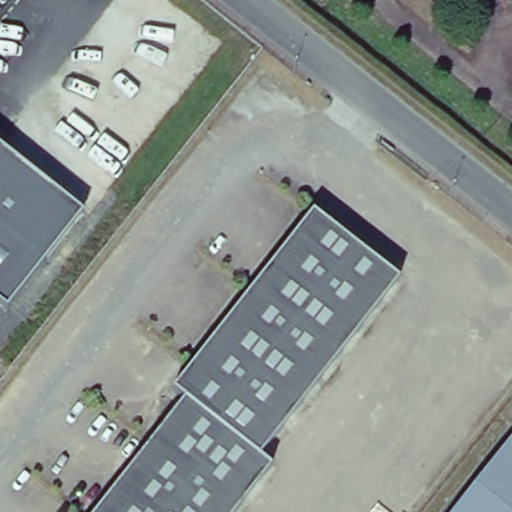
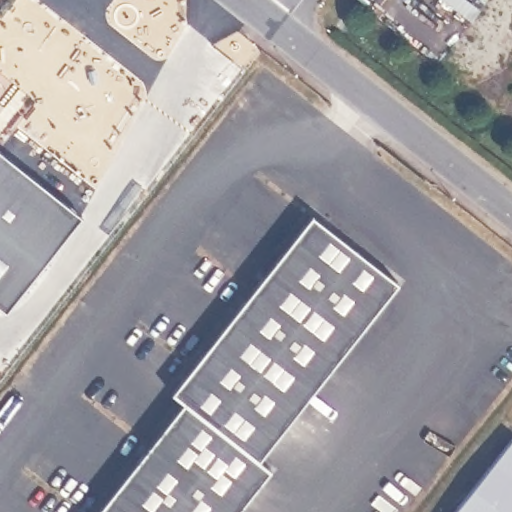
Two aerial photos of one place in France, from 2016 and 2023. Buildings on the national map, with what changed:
unchanged [(1,144),(0,144),(0,143),(1,144)]
unchanged [(86,212),(7,311),(0,305),(0,144),(1,144),(86,212)]
unchanged [(169,396),(310,219),(395,285),(255,462),(268,471),(236,512),(97,512),(179,406),(169,396)]
unchanged [(512,512),(456,512),(512,440),(512,512)]

